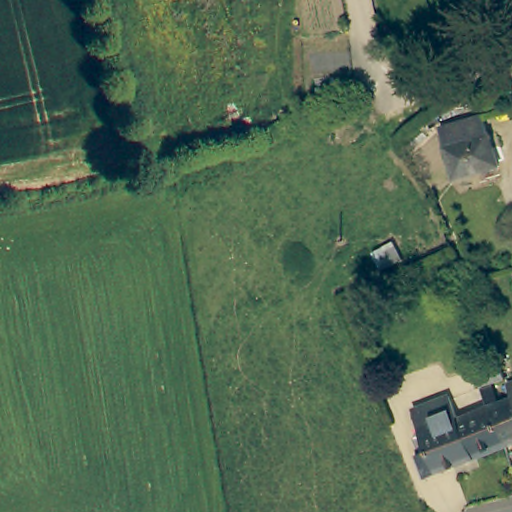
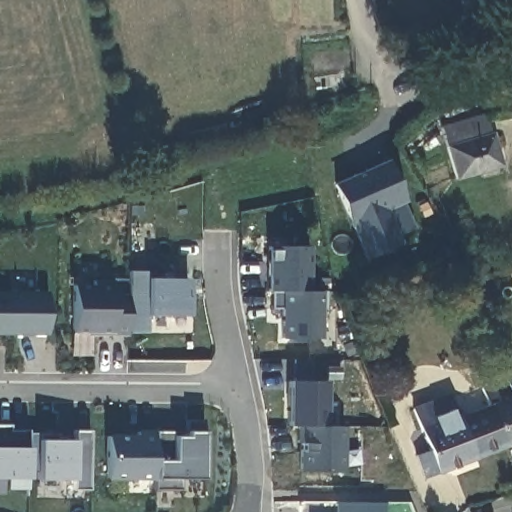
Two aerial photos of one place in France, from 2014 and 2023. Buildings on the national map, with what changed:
unchanged [(475,99),(480,116),(466,120),(461,103),(475,99)]
unchanged [(489,139),(493,142),(499,167),(452,178),(446,154),(448,154),(443,134),(484,124),(489,139)]
new [(405,202),(414,228),(398,235),(402,244),(363,261),(331,183),(387,160),(405,202)]
new [(311,291),(323,291),(322,338),(281,338),(281,308),(271,308),(270,291),(266,291),(268,247),(311,247),(311,291)]
new [(187,315),(146,316),(146,333),(127,333),(72,332),(73,284),(92,284),(92,280),(112,281),(113,293),(128,294),(127,271),(146,271),(145,279),(188,279),(187,315)]
new [(47,335),(0,334),(0,291),(48,292),(47,335)]
new [(297,425),(287,426),(288,381),(293,381),(294,360),(321,359),(321,381),(326,381),(326,426),(345,427),(345,471),(298,471),(297,425)]
unchanged [(476,374),(499,364),(506,381),(482,390),(476,374)]
unchanged [(512,384),(512,392),(510,384),(512,384)]
unchanged [(460,420),(491,409),(508,448),(425,478),(417,456),(430,452),(415,408),(450,396),(460,420)]
unchanged [(512,402),(512,447),(508,448),(491,409),(512,402)]
new [(180,478),(181,490),(156,490),(156,478),(108,478),(107,434),(136,435),(136,429),(156,430),(172,431),(174,437),(187,437),(187,432),(187,420),(203,421),(203,478),(180,478)]
new [(29,448),(29,479),(28,489),(7,489),(8,478),(0,478),(0,425),(9,425),(9,430),(28,430),(29,448)]
new [(90,489),(75,489),(75,480),(36,482),(37,440),(75,440),(74,431),(91,431),(90,489)]
new [(335,512),(335,502),(383,502),(383,512),(335,512)]

